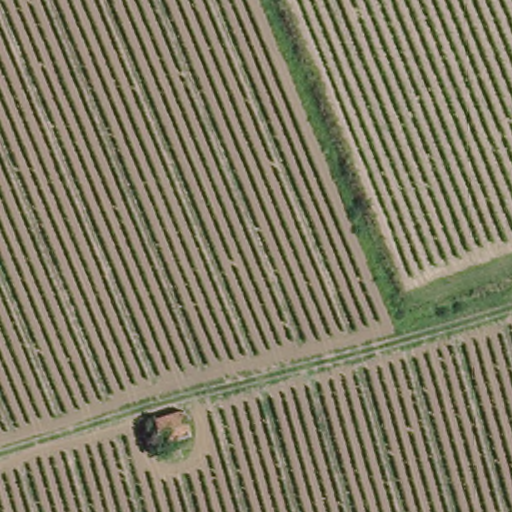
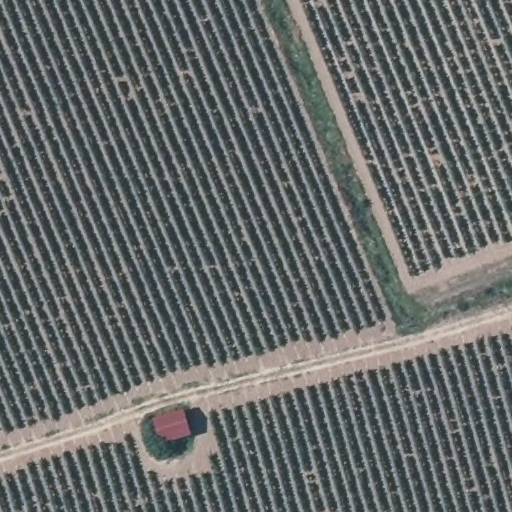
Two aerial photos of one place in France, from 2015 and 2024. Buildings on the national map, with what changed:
unchanged [(184,410),(193,438),(165,446),(156,419),(184,410)]

